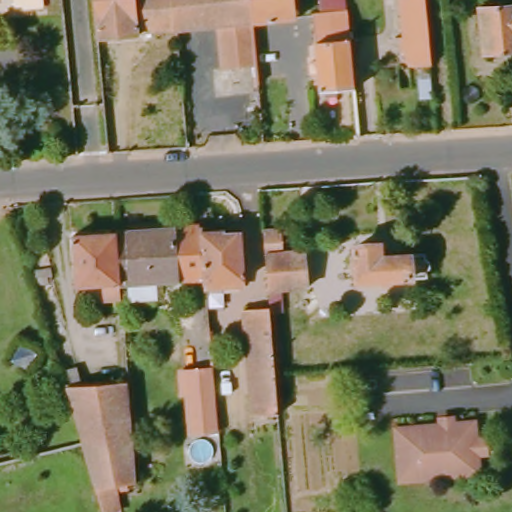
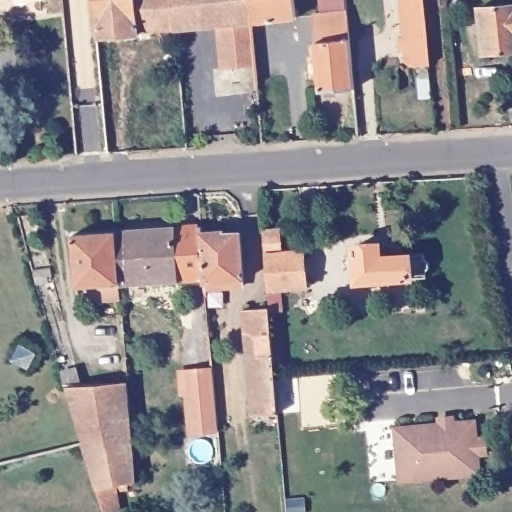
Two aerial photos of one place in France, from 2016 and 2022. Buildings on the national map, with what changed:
unchanged [(135,33),(94,36),(90,0),(133,0),(135,33)]
unchanged [(135,33),(133,0),(171,0),(174,30),(135,33)]
unchanged [(247,17),(251,63),(219,65),(217,27),(174,30),(171,0),(245,0),(247,17)]
unchanged [(247,17),(245,0),(290,0),(291,14),(247,17)]
unchanged [(318,0),(342,0),(343,15),(350,90),(317,92),(316,76),(307,77),(307,62),(315,61),(310,17),(319,16),(318,0)]
unchanged [(424,67),(402,68),(396,5),(404,4),(403,0),(416,0),(424,67)]
unchanged [(512,49),(476,51),(472,6),(512,3),(512,49)]
unchanged [(120,286),(117,236),(197,230),(197,233),(201,281),(120,286)]
unchanged [(265,308),(259,231),(275,230),(277,251),(302,251),(304,287),(277,288),(278,314),(266,315),(265,308)]
unchanged [(197,233),(224,231),(224,236),(233,235),(239,291),(202,295),(201,281),(197,233)]
unchanged [(76,288),(72,237),(117,236),(120,286),(76,288)]
unchanged [(425,276),(402,278),(347,282),(345,244),(372,242),(373,255),(400,255),(423,253),(425,276)]
unchanged [(274,415),(249,418),(240,310),(265,308),(266,315),(267,331),(271,380),(274,415)]
unchanged [(210,331),(211,340),(202,340),(202,332),(210,331)]
unchanged [(200,438),(200,433),(172,435),(169,396),(162,396),(160,373),(194,370),(195,375),(212,373),(213,393),(215,425),(217,436),(219,451),(202,453),(200,438)]
unchanged [(127,382),(128,395),(135,483),(91,490),(77,445),(60,391),(127,382)]
unchanged [(432,427),(433,432),(444,430),(442,424),(465,420),(468,438),(479,438),(480,454),(469,454),(472,473),(396,488),(387,436),(432,427)]

